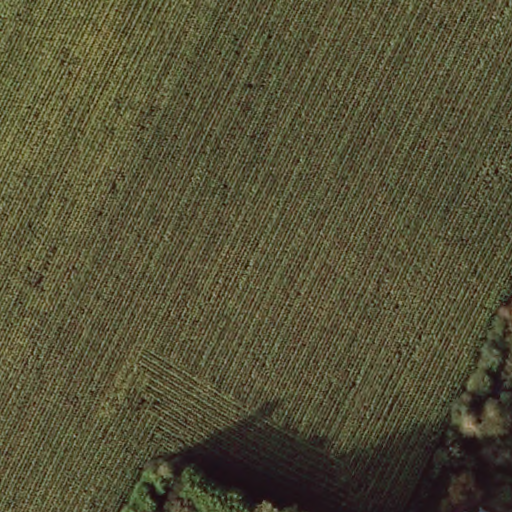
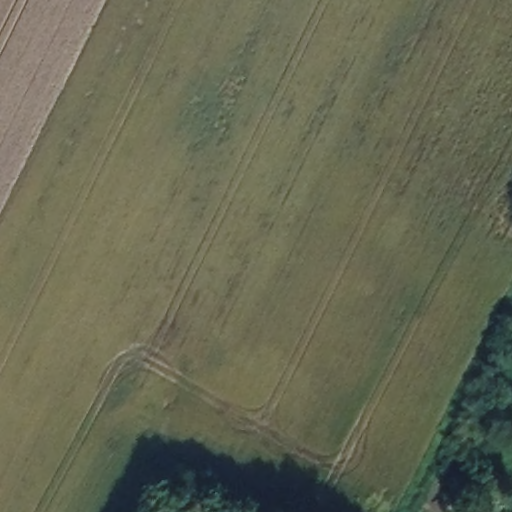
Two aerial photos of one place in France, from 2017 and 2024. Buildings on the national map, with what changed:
unchanged [(503,366),(512,370),(512,382),(505,398),(491,391),(503,366)]
unchanged [(498,406),(488,425),(473,417),(483,397),(498,406)]
unchanged [(512,418),(512,435),(500,428),(507,415),(512,418)]

